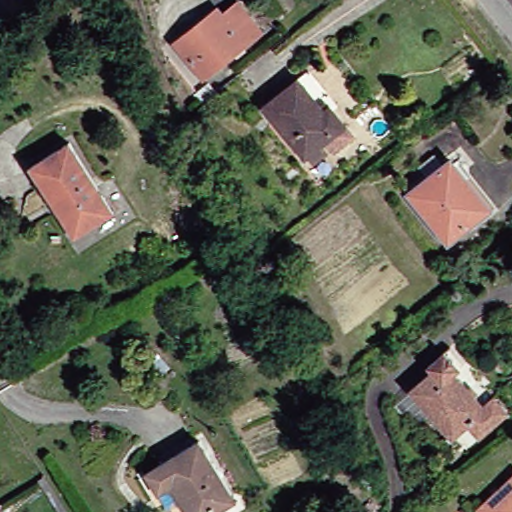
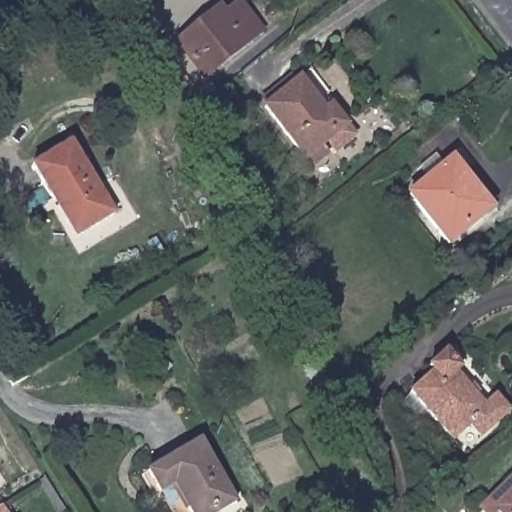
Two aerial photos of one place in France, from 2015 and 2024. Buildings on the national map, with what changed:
unchanged [(258,39),(201,85),(172,50),(215,15),(221,21),(235,10),(258,39)]
unchanged [(321,112),(327,108),(343,128),(302,161),(261,109),(296,81),(321,112)]
unchanged [(111,215),(71,239),(27,169),(66,145),(111,215)]
unchanged [(489,216),(446,251),(406,201),(449,167),(489,216)]
unchanged [(415,388),(435,369),(430,364),(448,349),(468,369),(462,374),(487,401),(500,390),(512,404),(512,413),(485,435),(473,424),(458,437),(415,388)]
unchanged [(197,443),(232,503),(218,512),(187,512),(170,486),(156,494),(145,474),(197,443)]
unchanged [(475,510),(512,474),(512,512),(476,512),(475,510)]

